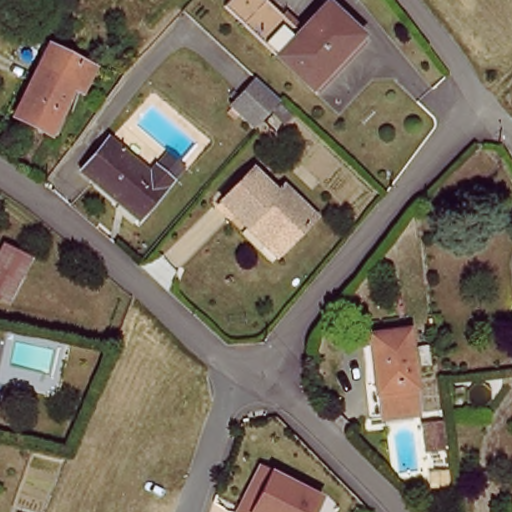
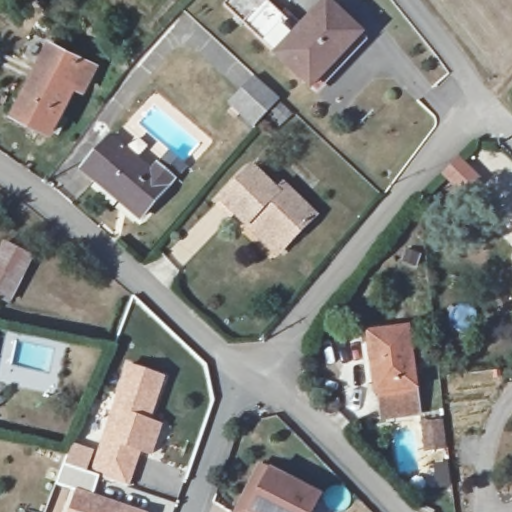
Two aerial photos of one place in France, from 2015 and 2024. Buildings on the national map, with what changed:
unchanged [(233,0),(265,0),(301,33),(329,3),(364,36),(314,92),(224,9),(233,0)]
unchanged [(54,41),(101,64),(88,89),(80,85),(54,135),(18,116),(54,41)]
unchanged [(257,127),(233,105),(259,77),(283,99),(257,127)]
unchanged [(113,139),(152,175),(158,169),(174,185),(141,222),(84,168),(113,139)]
unchanged [(251,222),(224,200),(253,167),(279,189),(286,181),(319,210),(291,245),(284,252),(251,222)]
unchanged [(35,257),(12,302),(0,296),(0,259),(8,243),(35,257)]
unchanged [(417,410),(387,412),(374,335),(409,332),(417,410)]
new [(103,442),(126,367),(165,378),(151,422),(163,426),(153,458),(141,454),(130,488),(91,475),(103,442)]
unchanged [(271,469),(324,497),(316,512),(237,512),(259,466),(271,469)]
new [(138,512),(70,512),(76,491),(138,512)]

